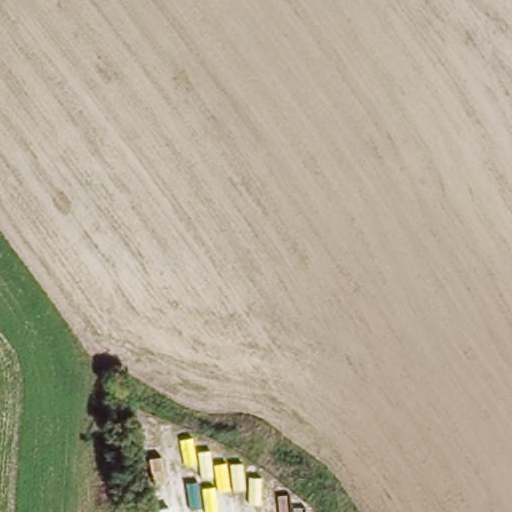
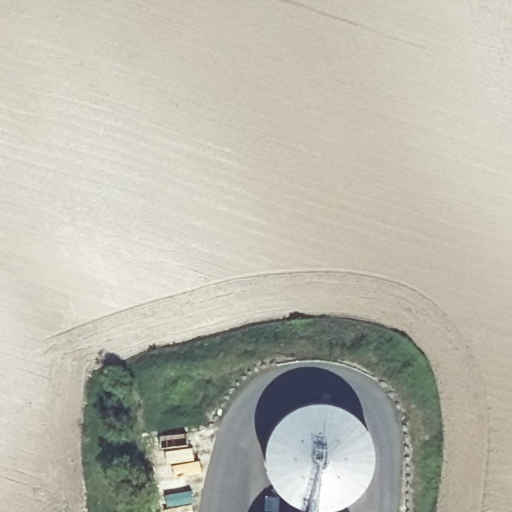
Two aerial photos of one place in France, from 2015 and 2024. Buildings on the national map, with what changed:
new [(298,503),(285,496),(275,485),(268,472),(265,458),(266,443),(271,430),(279,417),(290,408),(304,402),(318,400),(333,402),(346,407),(358,416),(366,428),(371,442),(372,457),(370,471),(363,484),(353,495),(341,503),(327,507),(312,507),(298,503)]

